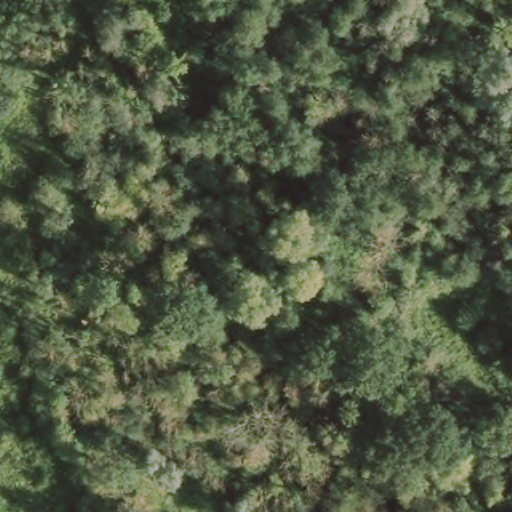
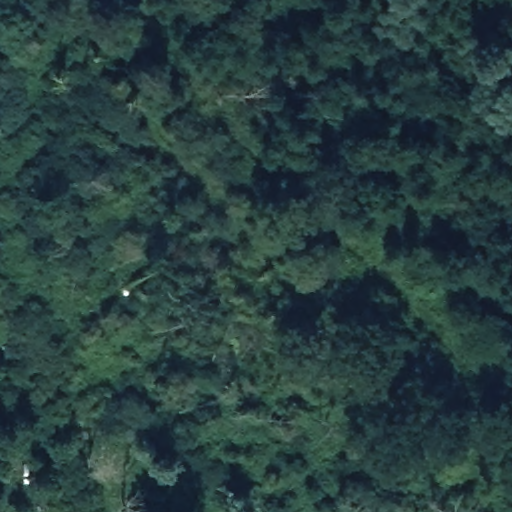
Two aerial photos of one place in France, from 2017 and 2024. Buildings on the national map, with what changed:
[]

